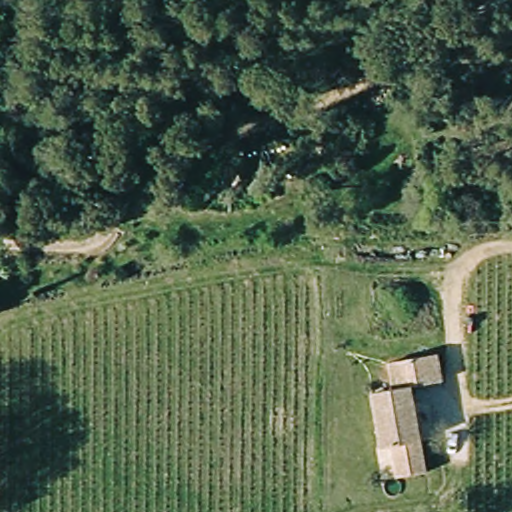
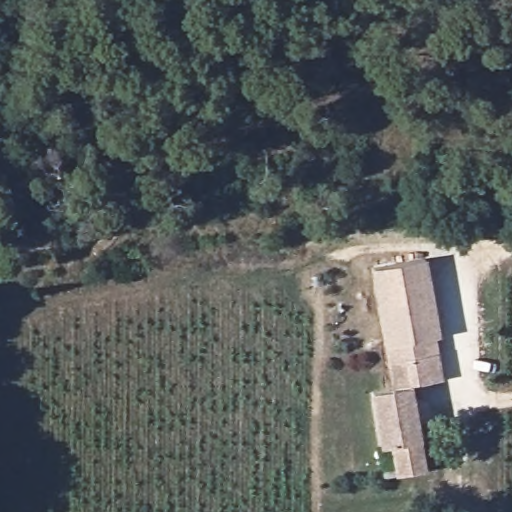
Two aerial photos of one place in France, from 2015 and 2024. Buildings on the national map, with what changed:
new [(385,346),(370,270),(427,259),(441,337),(435,337),(437,352),(390,362),(385,346)]
unchanged [(443,378),(412,385),(429,470),(402,476),(396,444),(386,446),(375,392),(396,388),(390,362),(437,352),(443,378)]

